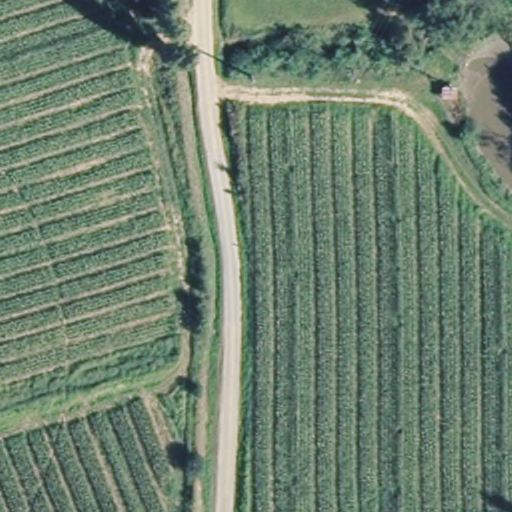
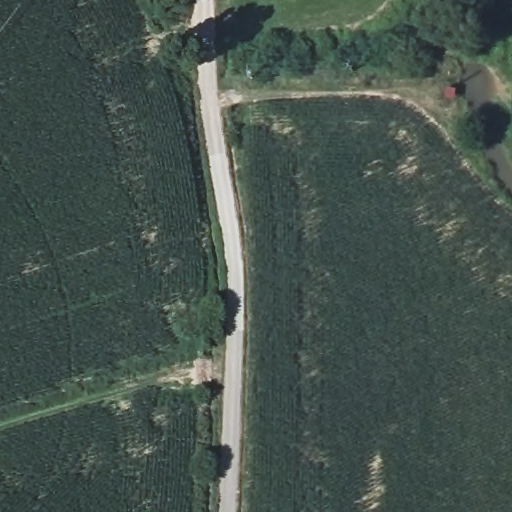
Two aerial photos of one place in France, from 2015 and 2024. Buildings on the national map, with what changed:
[]

